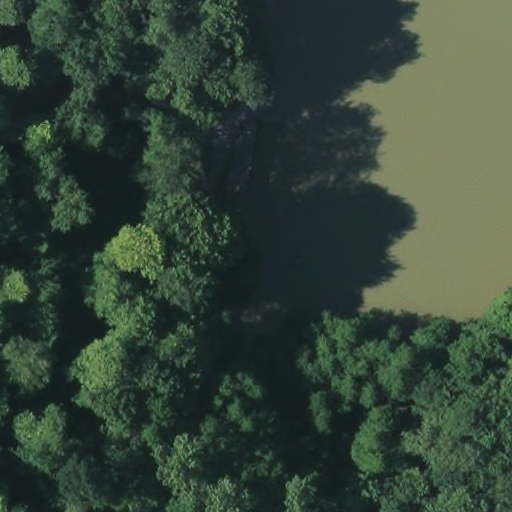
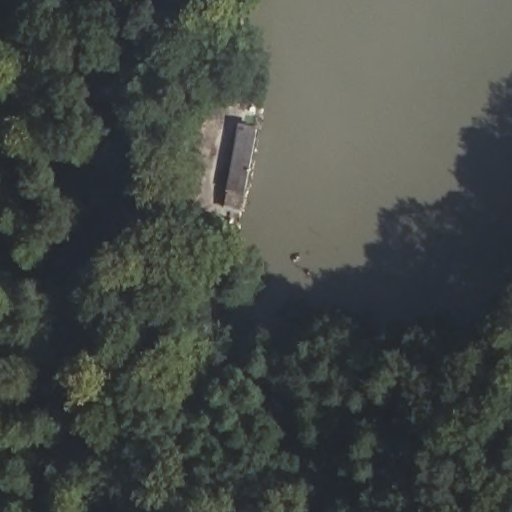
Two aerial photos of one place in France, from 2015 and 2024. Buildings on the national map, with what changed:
unchanged [(264,131),(248,212),(221,207),(234,126),(264,131)]

